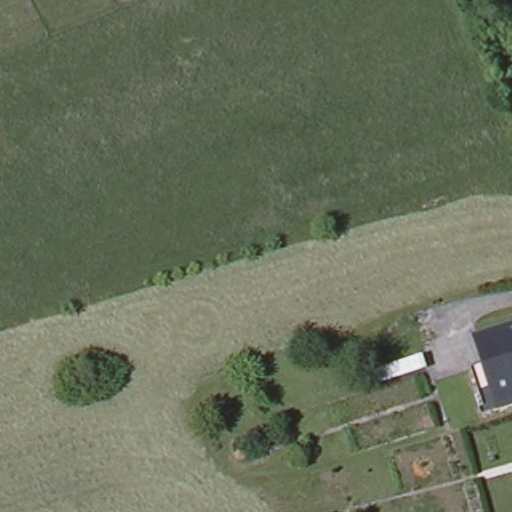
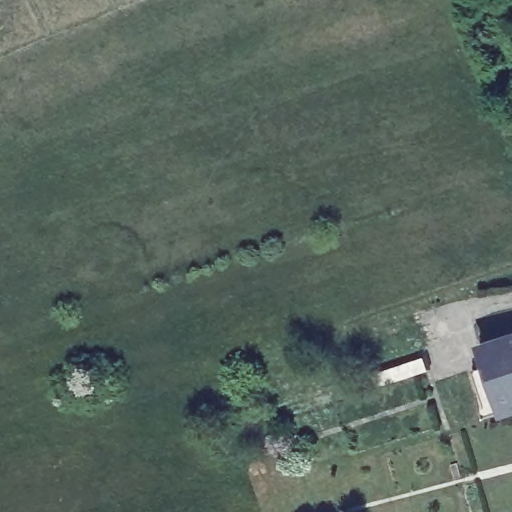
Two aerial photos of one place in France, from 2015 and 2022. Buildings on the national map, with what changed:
unchanged [(512,324),(512,396),(504,399),(490,403),(476,358),(490,353),(484,333),(512,324)]

